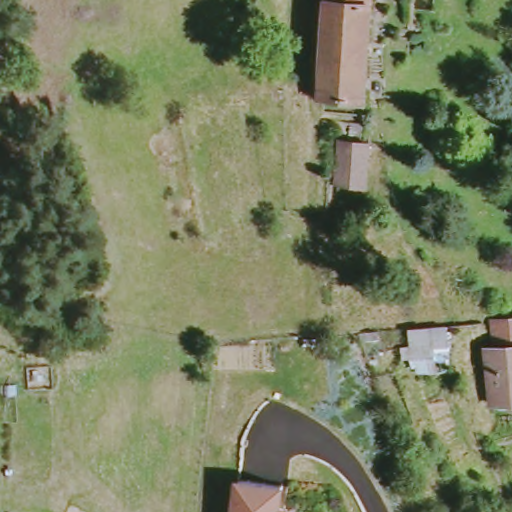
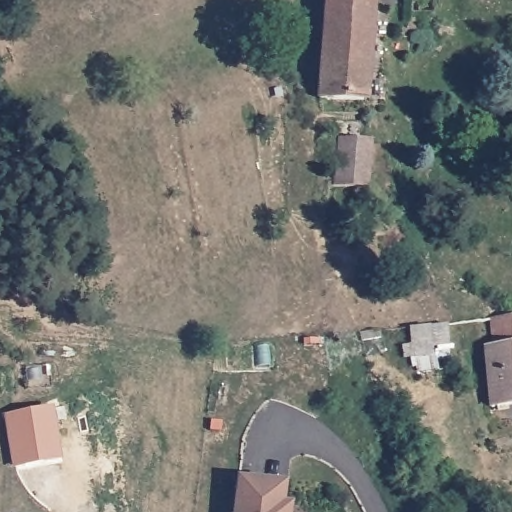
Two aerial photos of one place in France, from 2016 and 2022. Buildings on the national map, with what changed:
unchanged [(376,0),(371,100),(322,99),(323,90),(325,0),(376,0)]
unchanged [(364,195),(334,192),(339,130),(371,133),(364,195)]
unchanged [(486,347),(495,345),(492,320),(512,318),(512,401),(492,404),(486,347)]
unchanged [(438,375),(411,376),(410,361),(393,359),(380,368),(369,369),(364,336),(378,333),(384,351),(406,348),(409,327),(430,327),(449,326),(450,372),(438,375)]
new [(53,410),(61,460),(19,466),(11,417),(53,410)]
unchanged [(280,487),(277,508),(286,509),(285,512),(230,512),(236,482),(280,487)]

